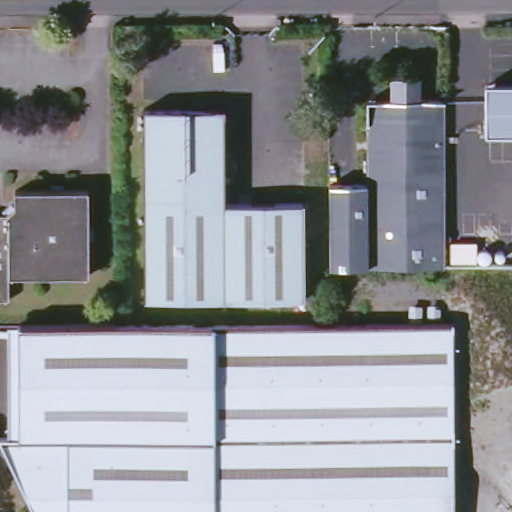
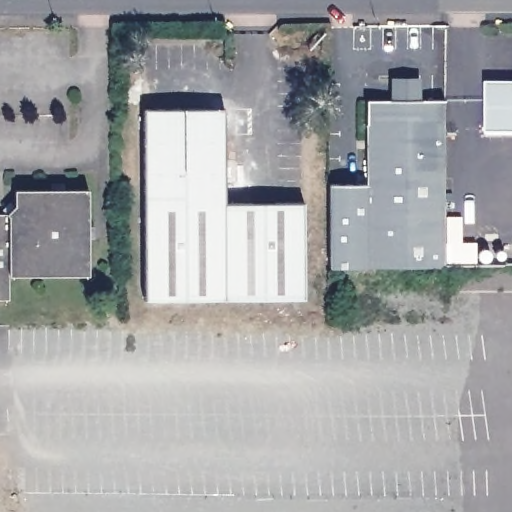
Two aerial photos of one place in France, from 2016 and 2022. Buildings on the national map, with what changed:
unchanged [(444,262),(327,264),(326,180),(362,180),(361,96),(385,96),(386,72),(415,72),(415,96),(443,96),(444,262)]
unchanged [(475,129),(475,79),(512,79),(512,128),(475,129)]
unchanged [(225,203),(304,202),(305,301),(146,303),(143,110),(225,109),(225,203)]
unchanged [(17,205),(17,186),(90,186),(90,273),(13,273),(13,300),(0,300),(0,213),(10,212),(17,205)]
demolished [(13,435),(12,321),(118,320),(175,319),(327,318),(451,316),(453,453),(269,457),(270,512),(21,512),(0,447),(0,435),(2,435),(13,435)]
demolished [(453,453),(454,512),(270,512),(269,457),(453,453)]

